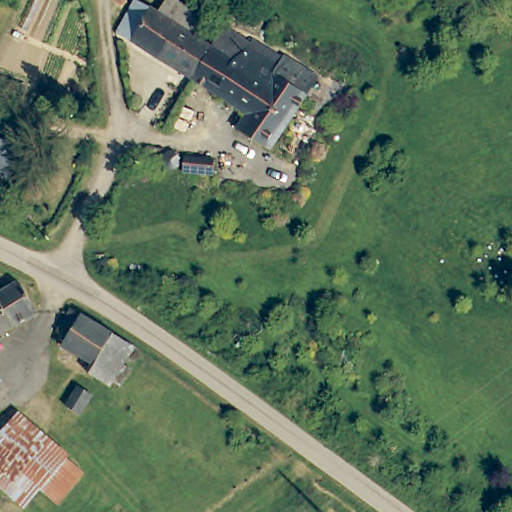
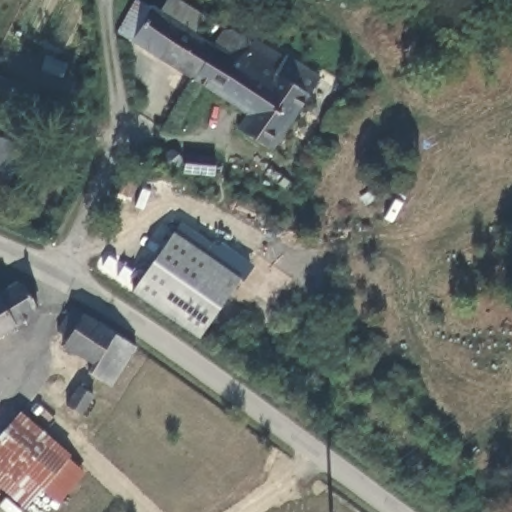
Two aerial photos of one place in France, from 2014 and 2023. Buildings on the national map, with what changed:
unchanged [(320,76),(306,99),(274,151),(239,129),(248,116),(196,81),(119,32),(137,0),(139,0),(161,13),(168,0),(180,0),(205,16),(195,34),(213,45),(225,28),(252,45),(283,66),(288,57),(320,76)]
unchanged [(24,88),(17,107),(12,106),(0,102),(0,80),(24,88)]
unchanged [(4,181),(0,180),(0,143),(3,144),(16,148),(4,181)]
unchanged [(159,159),(160,157),(162,155),(163,154),(165,153),(167,151),(169,151),(172,151),(174,153),(176,154),(177,155),(179,157),(179,159),(180,161),(180,164),(179,166),(178,168),(177,170),(175,171),(174,172),(171,173),(169,173),(167,173),(165,172),(163,171),(161,170),(160,168),(159,166),(159,164),(159,161),(159,159)]
unchanged [(182,156),(211,159),(208,179),(180,171),(182,156)]
new [(180,223),(214,247),(208,257),(240,280),(198,338),(131,293),(173,233),(180,223)]
unchanged [(12,286),(17,288),(34,317),(0,336),(0,293),(12,286)]
unchanged [(77,311),(142,350),(132,366),(120,385),(116,389),(94,375),(98,368),(67,349),(72,340),(62,333),(77,311)]
unchanged [(75,387),(90,397),(77,418),(61,408),(75,387)]
unchanged [(26,409),(76,453),(72,456),(89,471),(66,497),(50,483),(29,505),(0,479),(0,436),(26,409)]

